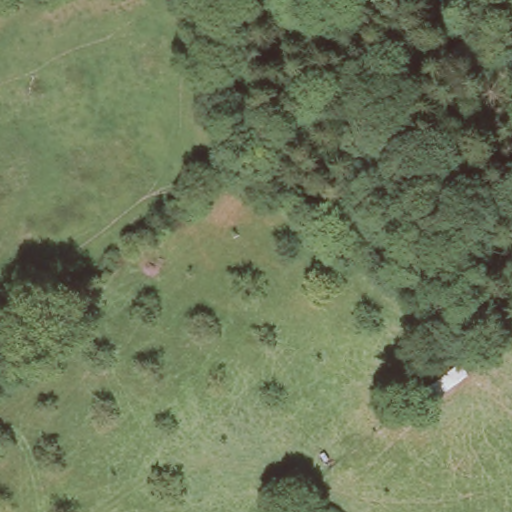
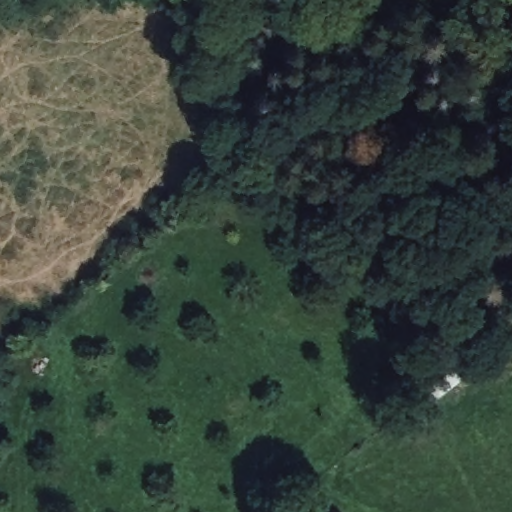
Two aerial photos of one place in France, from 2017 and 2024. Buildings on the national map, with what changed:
unchanged [(482,354),(476,349),(449,329),(458,314),(492,338),(494,339),(482,354)]
unchanged [(425,394),(422,390),(419,385),(460,353),(465,358),(468,362),(425,394)]

